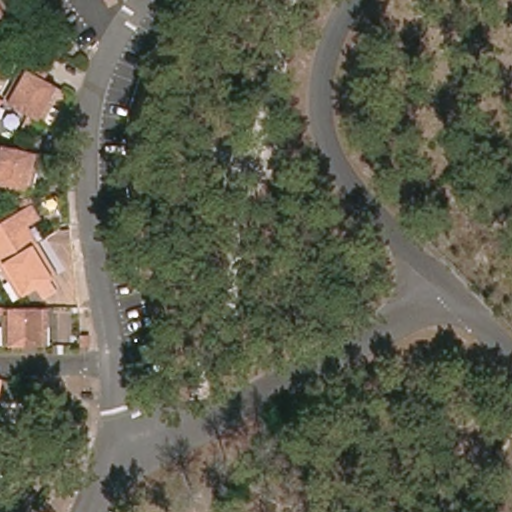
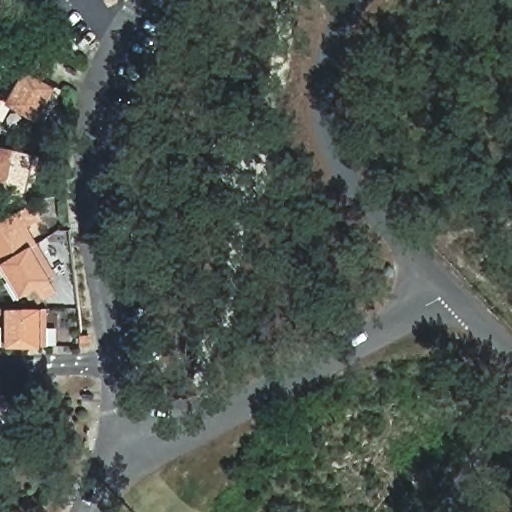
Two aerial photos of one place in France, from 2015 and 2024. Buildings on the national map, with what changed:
unchanged [(0,19),(0,4),(6,15),(0,19)]
unchanged [(34,119),(7,101),(28,69),(30,70),(40,54),(53,61),(44,78),(53,84),(34,119)]
unchanged [(0,99),(0,96),(1,97),(0,99)]
unchanged [(30,191),(0,184),(0,166),(4,147),(36,154),(30,191)]
unchanged [(1,266),(0,263),(0,224),(30,206),(49,239),(40,244),(10,261),(1,266)]
unchanged [(40,244),(57,272),(25,289),(10,261),(40,244)]
unchanged [(44,342),(7,341),(8,307),(45,307),(44,342)]
unchanged [(1,400),(0,400),(0,375),(4,376),(1,400)]

